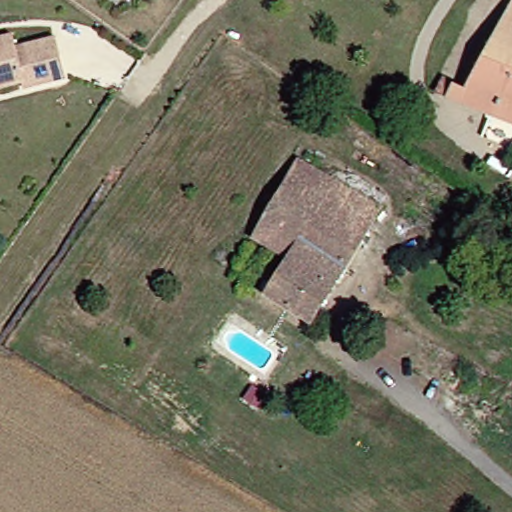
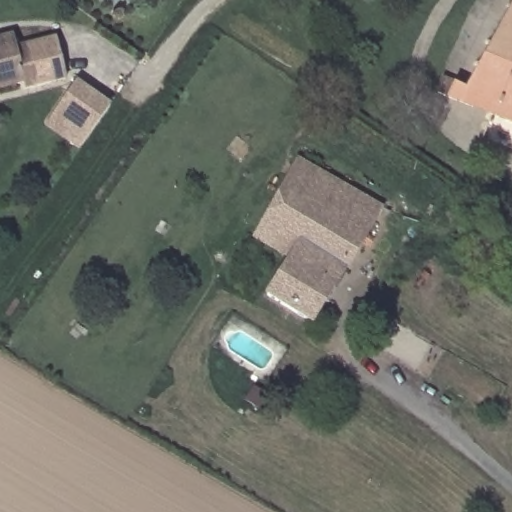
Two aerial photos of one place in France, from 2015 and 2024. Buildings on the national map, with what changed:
unchanged [(432,77),(455,86),(504,0),(512,0),(512,124),(426,92),(432,77)]
unchanged [(10,35),(13,48),(53,37),(64,77),(24,89),(22,83),(0,89),(0,38),(10,35)]
new [(112,102),(79,149),(44,125),(77,77),(112,102)]
unchanged [(293,156),(372,204),(301,317),(258,290),(280,252),(246,232),(293,156)]

